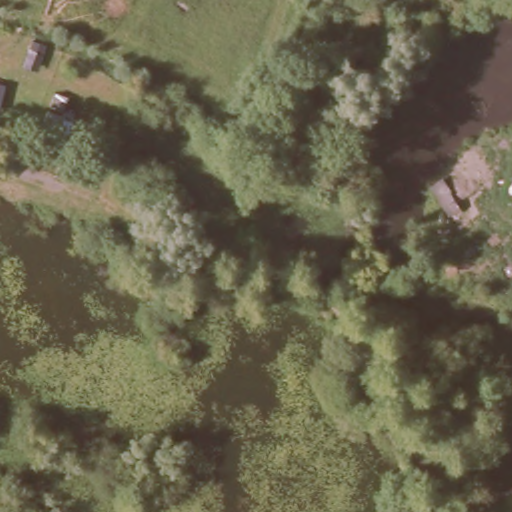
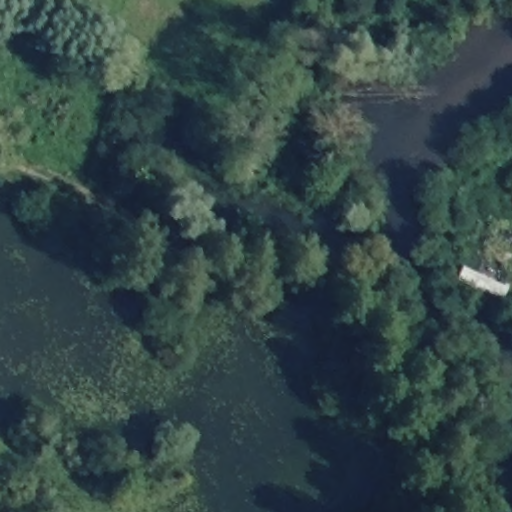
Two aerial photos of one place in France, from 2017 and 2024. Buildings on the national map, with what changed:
unchanged [(437,204),(430,185),(447,175),(459,194),(437,204)]

